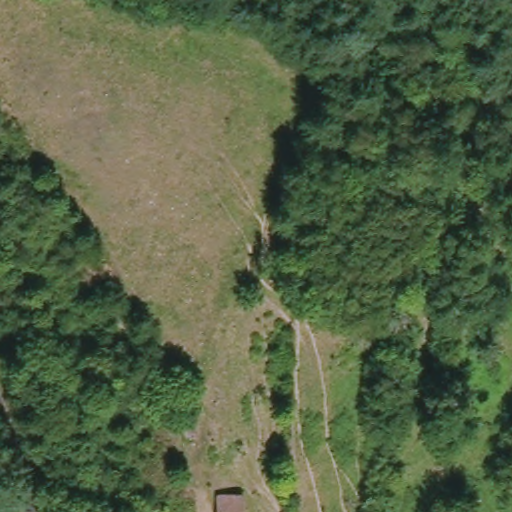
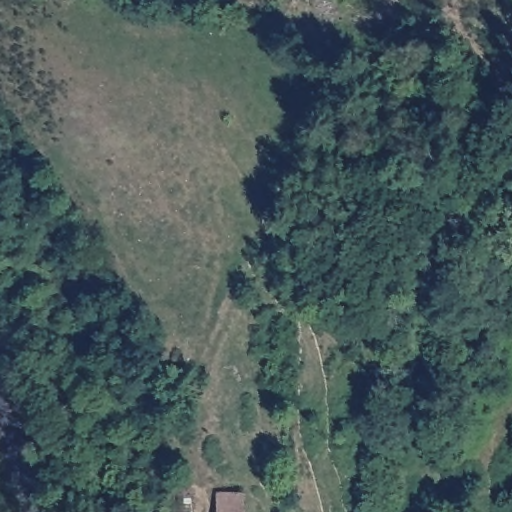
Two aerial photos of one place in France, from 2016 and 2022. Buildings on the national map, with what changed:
unchanged [(244,491),(244,512),(217,512),(216,488),(244,491)]

